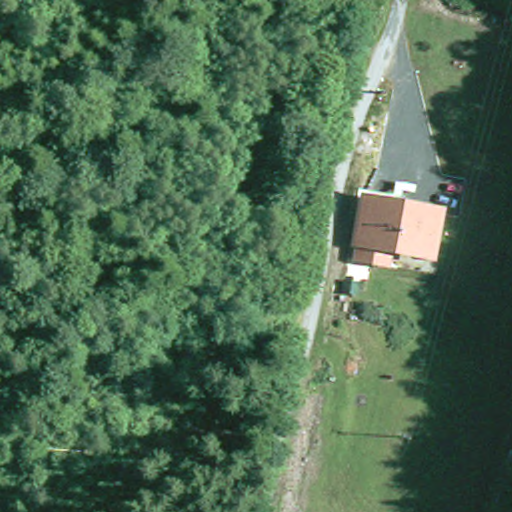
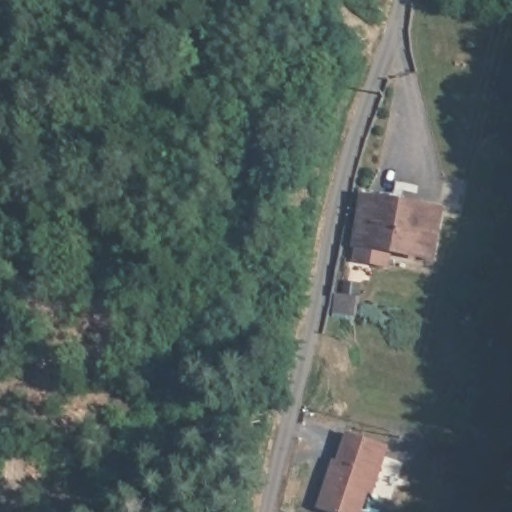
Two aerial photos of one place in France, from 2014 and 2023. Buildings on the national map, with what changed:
unchanged [(356,197),(363,198),(363,203),(396,206),(396,200),(432,204),(428,248),(386,244),(384,261),(350,257),(356,197)]
new [(347,431),(389,445),(374,495),(369,493),(363,512),(331,512),(318,508),(333,458),(338,459),(347,431)]

